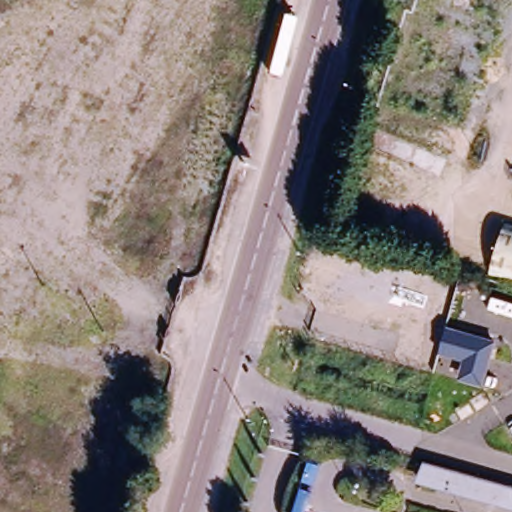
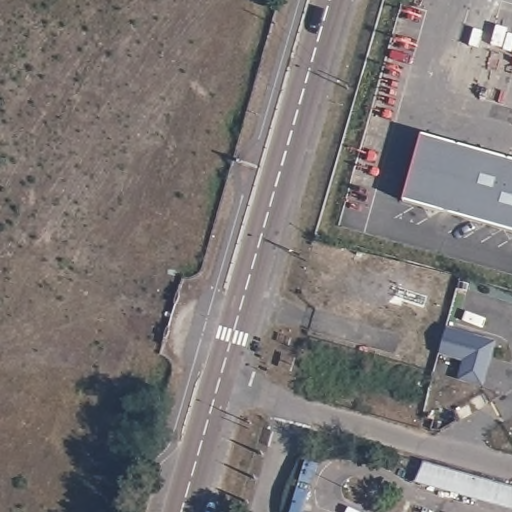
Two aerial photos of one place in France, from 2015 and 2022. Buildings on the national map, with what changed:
new [(421,134),(512,159),(512,230),(404,200),(421,134)]
unchanged [(459,380),(458,365),(442,359),(446,332),(492,343),(483,387),(459,380)]
unchanged [(414,464),(512,491),(512,512),(506,512),(410,483),(414,464)]

